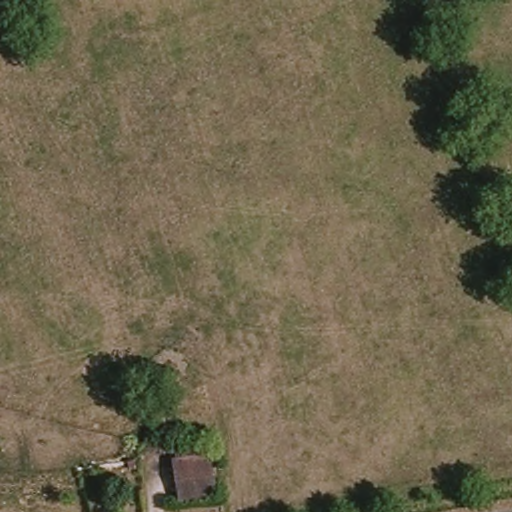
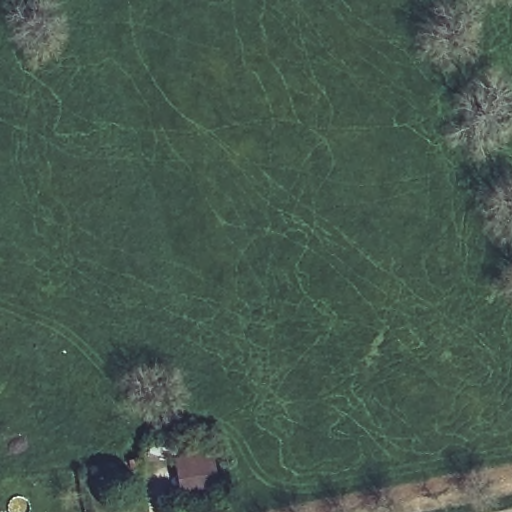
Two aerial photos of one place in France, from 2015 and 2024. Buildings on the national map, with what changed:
unchanged [(180,501),(177,469),(212,465),(214,497),(180,501)]

